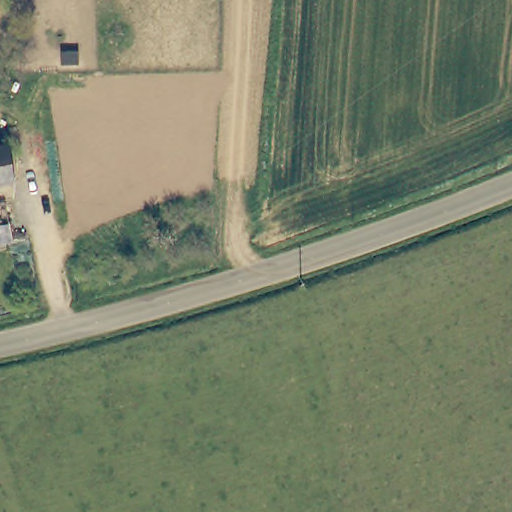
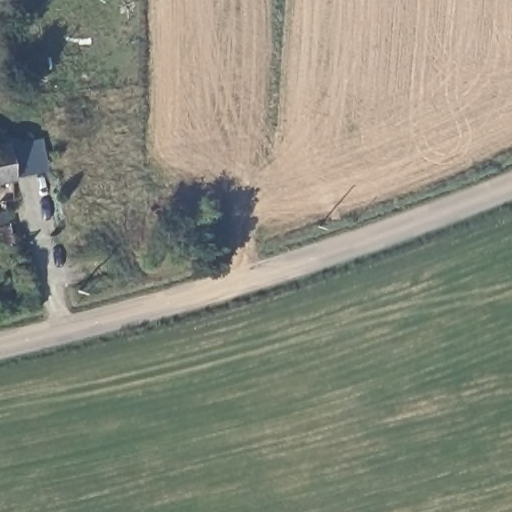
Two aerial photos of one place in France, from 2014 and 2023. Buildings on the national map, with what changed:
unchanged [(13,181),(0,184),(0,147),(6,146),(13,181)]

